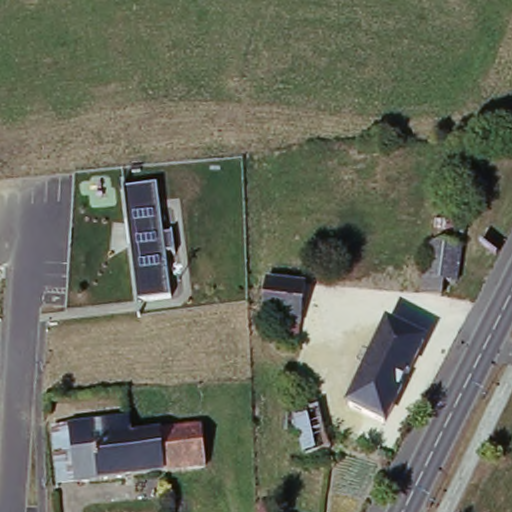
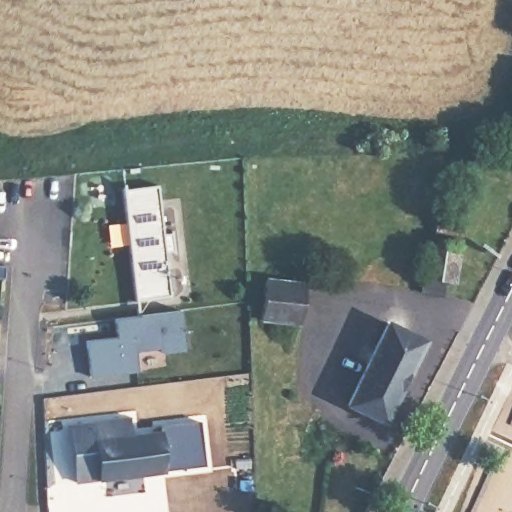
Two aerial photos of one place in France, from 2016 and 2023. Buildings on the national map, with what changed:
demolished [(458,165),(483,169),(478,197),(451,190),(458,165)]
unchanged [(174,295),(138,300),(124,190),(159,184),(174,295)]
unchanged [(460,250),(455,285),(444,284),(441,298),(422,294),(429,246),(460,250)]
unchanged [(261,324),(267,286),(305,292),(300,330),(261,324)]
new [(117,339),(114,322),(180,313),(185,353),(162,355),(161,350),(136,353),(138,374),(90,379),(86,344),(117,339)]
unchanged [(424,349),(384,428),(349,410),(389,332),(424,349)]
demolished [(322,413),(333,454),(311,460),(299,419),(322,413)]
unchanged [(82,483),(76,427),(134,419),(136,437),(204,429),(208,469),(170,474),(82,483)]
unchanged [(82,483),(55,486),(53,429),(76,427),(82,483)]
unchanged [(276,512),(261,512),(261,505),(261,506),(276,507),(276,512)]

